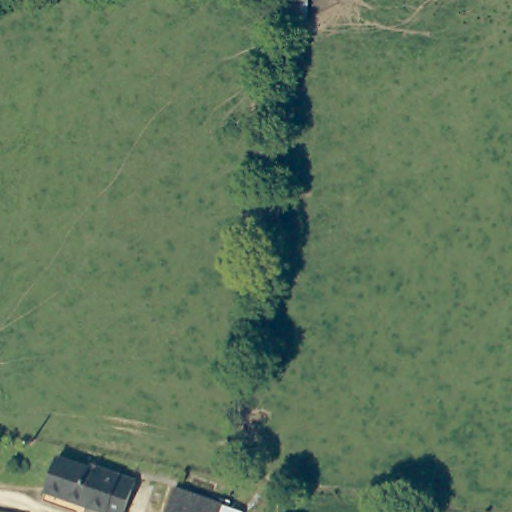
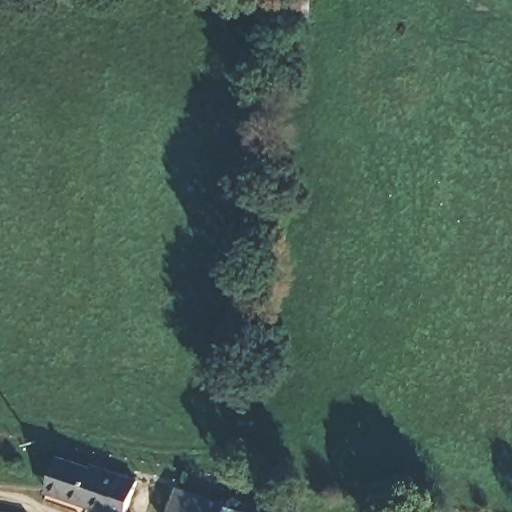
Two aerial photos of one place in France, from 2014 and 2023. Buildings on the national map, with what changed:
unchanged [(108,512),(80,503),(48,492),(61,459),(136,484),(130,501),(125,512),(108,512)]
unchanged [(166,512),(176,486),(224,505),(243,511),(242,512),(166,512)]

